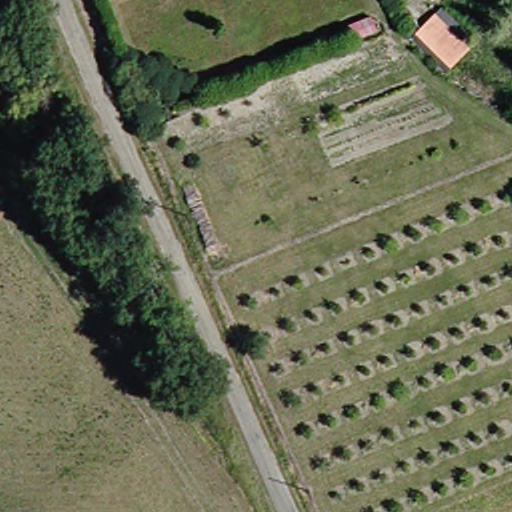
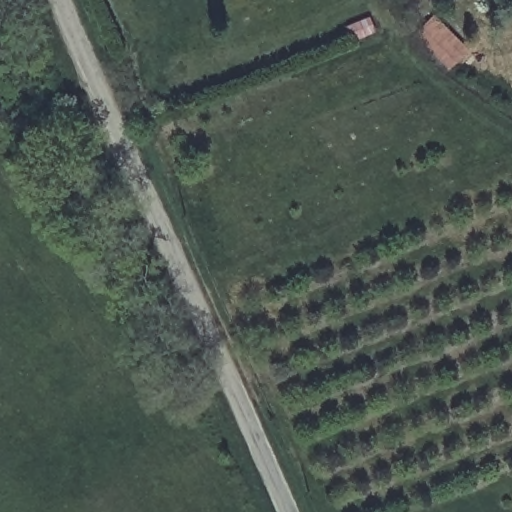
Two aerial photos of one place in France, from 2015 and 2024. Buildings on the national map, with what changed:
unchanged [(444,8),(461,25),(458,34),(472,48),(452,69),(419,35),(444,8)]

